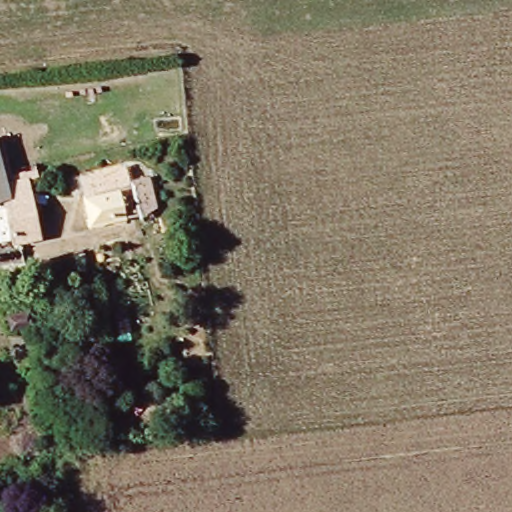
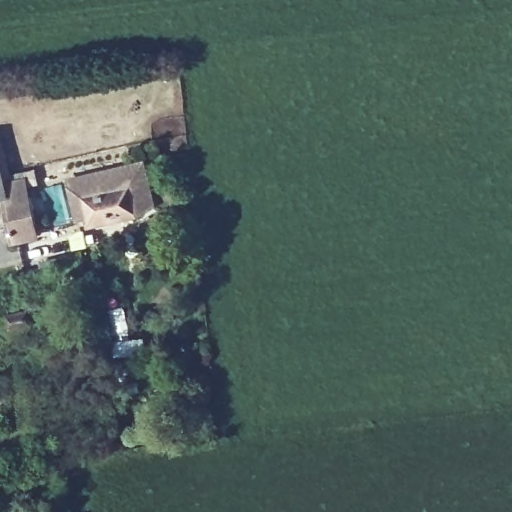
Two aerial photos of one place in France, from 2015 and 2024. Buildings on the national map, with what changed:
unchanged [(129,167),(132,184),(145,181),(154,205),(136,217),(101,222),(97,224),(86,174),(129,167)]
unchanged [(0,200),(0,168),(4,185),(7,199),(0,200)]
unchanged [(32,180),(42,237),(16,243),(7,199),(4,185),(32,180)]
unchanged [(21,310),(23,326),(0,329),(0,313),(21,310)]

